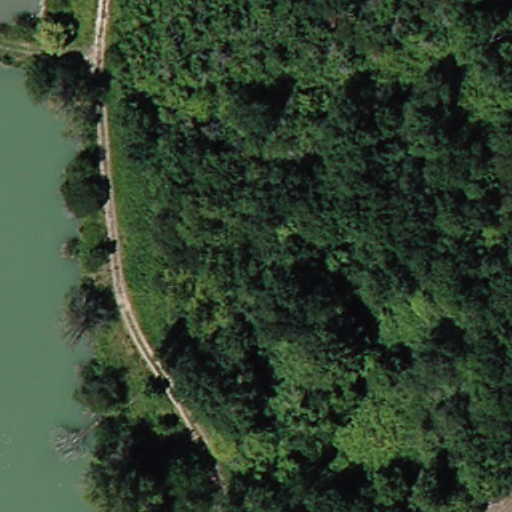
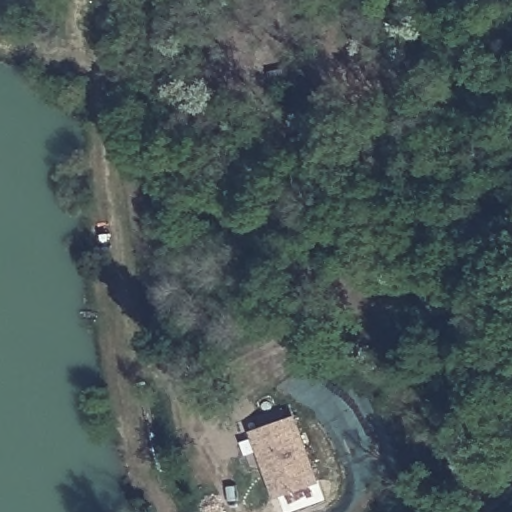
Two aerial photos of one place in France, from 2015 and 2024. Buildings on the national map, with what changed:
new [(290,420),(313,482),(275,496),(251,435),(290,420)]

